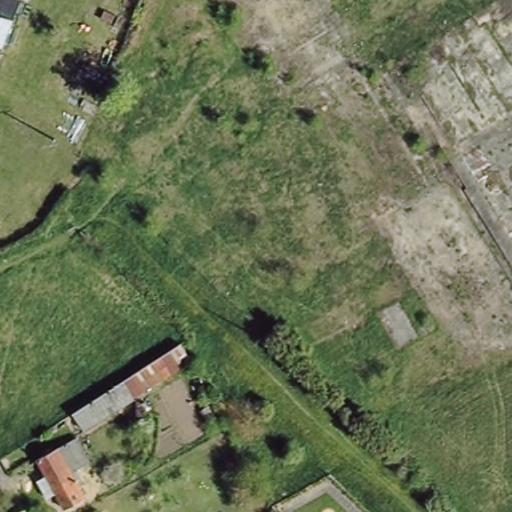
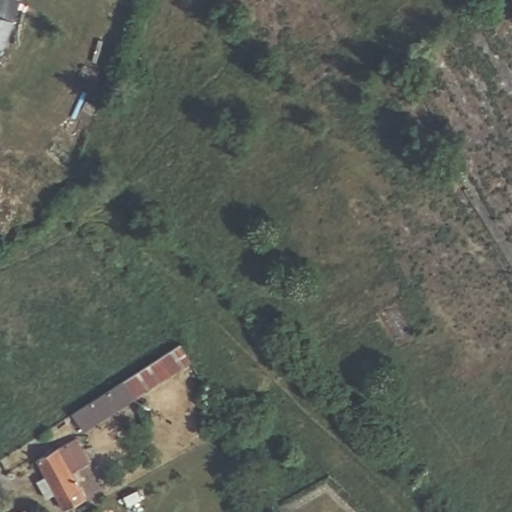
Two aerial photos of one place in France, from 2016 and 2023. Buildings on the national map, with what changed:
unchanged [(14,19),(3,44),(1,43),(0,47),(0,0),(19,0),(12,17),(14,19)]
unchanged [(51,215),(45,214),(50,203),(55,205),(51,215)]
unchanged [(74,411),(103,393),(104,392),(180,343),(190,362),(115,410),(85,430),(74,411)]
unchanged [(39,458),(77,437),(90,461),(72,471),(86,497),(66,508),(56,491),(50,495),(40,476),(47,473),(39,458)]

